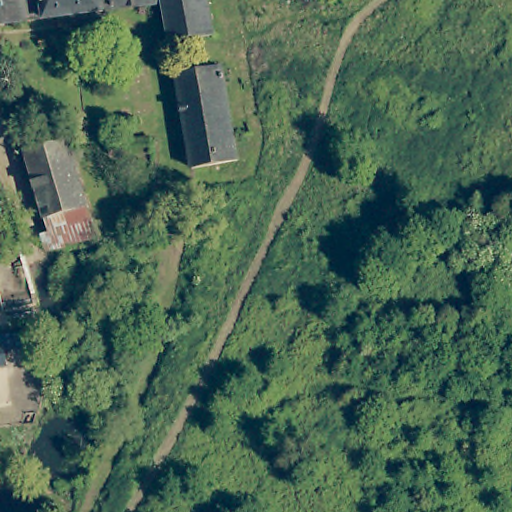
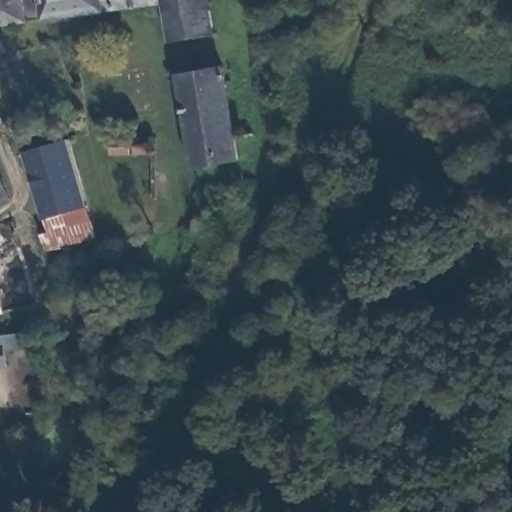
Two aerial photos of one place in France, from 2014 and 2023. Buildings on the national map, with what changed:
unchanged [(0,25),(0,0),(24,0),(26,21),(0,25)]
unchanged [(167,44),(161,4),(26,21),(24,0),(206,0),(210,35),(167,44)]
unchanged [(244,157),(211,162),(192,165),(180,74),(232,65),(244,157)]
unchanged [(94,215),(51,223),(37,157),(81,150),(94,215)]
unchanged [(12,202),(6,204),(0,206),(0,164),(12,202)]
unchanged [(4,283),(0,285),(0,276),(4,283)]
unchanged [(0,362),(0,339),(7,338),(44,335),(45,348),(8,352),(9,361),(0,362)]

